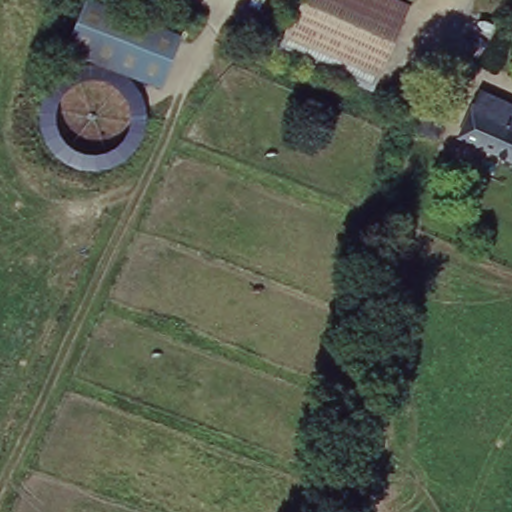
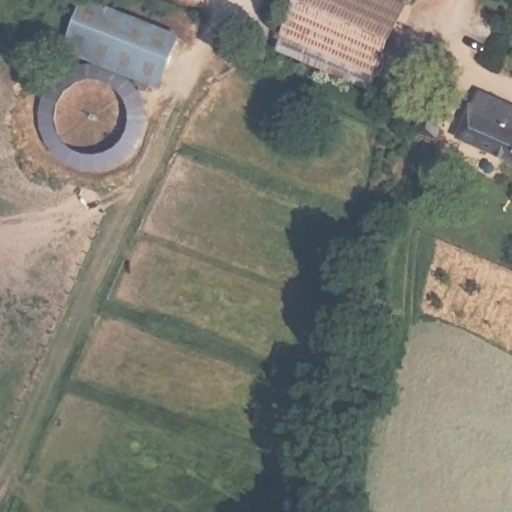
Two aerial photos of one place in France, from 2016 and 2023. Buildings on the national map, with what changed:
unchanged [(66,49),(84,0),(85,0),(179,38),(160,87),(124,72),(101,63),(66,49)]
unchanged [(412,0),(381,69),(290,30),(302,0),(412,0)]
unchanged [(381,69),(374,83),(284,44),(290,30),(381,69)]
unchanged [(44,119),(44,117),(44,116),(44,115),(44,113),(44,112),(44,111),(44,110),(44,109),(44,108),(44,107),(44,106),(44,105),(44,104),(45,104),(45,103),(45,101),(46,100),(46,99),(46,98),(46,96),(47,95),(48,94),(48,93),(49,91),(50,90),(50,89),(51,88),(51,86),(52,85),(53,85),(53,84),(54,83),(56,81),(57,80),(58,79),(59,78),(60,77),(60,76),(61,75),(62,75),(63,74),(64,74),(64,73),(65,73),(66,72),(66,71),(67,71),(68,71),(69,70),(70,70),(71,69),(72,68),(73,68),(74,68),(75,67),(75,66),(76,66),(77,66),(78,66),(79,66),(80,65),(81,65),(82,65),(84,65),(86,64),(87,64),(88,64),(90,64),(91,63),(93,63),(95,63),(96,63),(101,63),(124,72),(130,76),(130,77),(131,78),(132,79),(133,80),(134,81),(135,81),(135,82),(136,83),(136,84),(137,85),(138,86),(139,87),(139,88),(140,89),(140,90),(141,91),(141,92),(141,93),(142,94),(142,95),(143,95),(143,96),(144,99),(144,100),(145,101),(145,103),(145,104),(146,104),(146,105),(146,106),(146,107),(146,108),(146,109),(146,110),(146,111),(146,113),(146,116),(146,118),(146,119),(146,120),(146,121),(146,123),(146,124),(146,125),(145,126),(145,127),(145,128),(144,130),(144,131),(144,132),(143,133),(143,135),(142,136),(141,136),(141,137),(140,139),(140,140),(139,140),(139,141),(138,142),(138,143),(136,144),(136,145),(136,146),(135,146),(135,147),(134,148),(134,149),(133,149),(132,150),(131,151),(130,151),(130,152),(129,153),(128,154),(127,155),(126,156),(125,156),(124,156),(123,157),(123,158),(121,158),(121,159),(120,159),(120,160),(119,160),(118,161),(117,161),(116,161),(115,162),(114,163),(113,163),(112,163),(111,163),(111,164),(110,164),(109,164),(108,165),(107,165),(106,165),(105,165),(104,165),(104,166),(103,166),(101,166),(100,166),(99,166),(98,166),(97,166),(96,166),(93,166),(91,166),(90,166),(89,166),(88,165),(87,165),(86,165),(85,165),(84,165),(83,165),(82,164),(81,164),(80,164),(79,163),(78,163),(76,162),(75,162),(75,161),(74,161),(73,161),(72,161),(71,160),(70,160),(70,159),(69,159),(68,158),(67,158),(66,158),(65,156),(64,156),(64,155),(63,155),(62,154),(61,154),(61,153),(59,152),(59,151),(58,151),(58,150),(56,149),(56,148),(55,147),(55,146),(54,146),(53,145),(52,144),(51,143),(51,142),(51,141),(50,140),(50,139),(49,138),(49,136),(48,136),(48,135),(48,134),(47,134),(46,133),(46,131),(46,130),(46,129),(45,128),(45,126),(45,125),(44,124),(44,123),(44,122),(44,121),(44,120),(44,119)]
unchanged [(484,85),(512,98),(512,151),(464,128),(484,85)]
unchanged [(443,108),(437,136),(417,131),(424,104),(443,108)]

